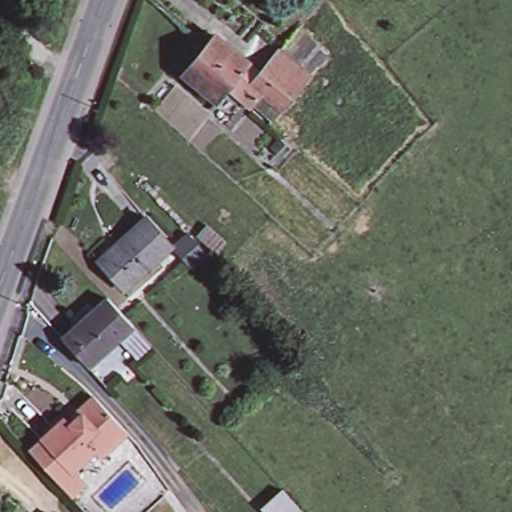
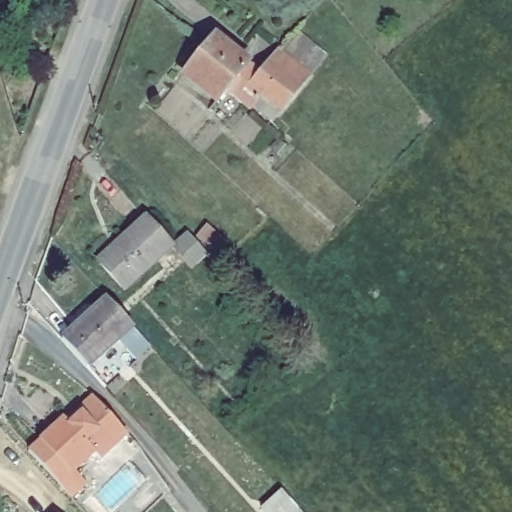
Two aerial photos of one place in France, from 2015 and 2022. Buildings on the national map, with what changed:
unchanged [(261,97),(247,112),(224,92),(212,103),(180,75),(213,39),(246,67),(257,76),(266,65),(295,89),(285,100),(277,110),(261,97)]
unchanged [(172,247),(125,291),(100,261),(147,219),(172,247)]
unchanged [(190,234),(210,256),(194,270),(183,258),(187,255),(179,244),(190,234)]
unchanged [(138,357),(120,337),(89,367),(63,338),(107,299),(132,326),(150,347),(138,357)]
unchanged [(70,421),(95,397),(130,432),(104,457),(98,451),(72,470),(89,486),(74,502),(27,450),(67,417),(70,421)]
unchanged [(301,512),(265,512),(284,493),(301,512)]

